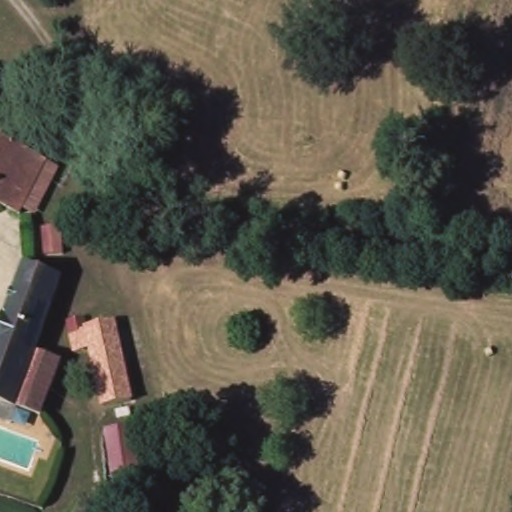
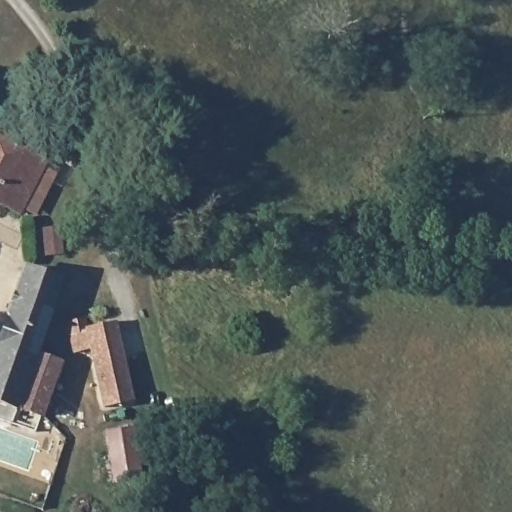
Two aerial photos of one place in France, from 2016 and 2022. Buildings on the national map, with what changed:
unchanged [(56,187),(46,183),(29,217),(0,201),(0,144),(4,137),(64,171),(56,187)]
unchanged [(61,279),(37,350),(61,360),(43,419),(19,411),(11,428),(0,424),(0,333),(26,262),(61,279)]
unchanged [(93,318),(97,331),(115,329),(135,392),(110,397),(97,349),(82,352),(75,322),(93,318)]
unchanged [(140,428),(151,479),(135,483),(132,474),(120,474),(112,433),(140,428)]

